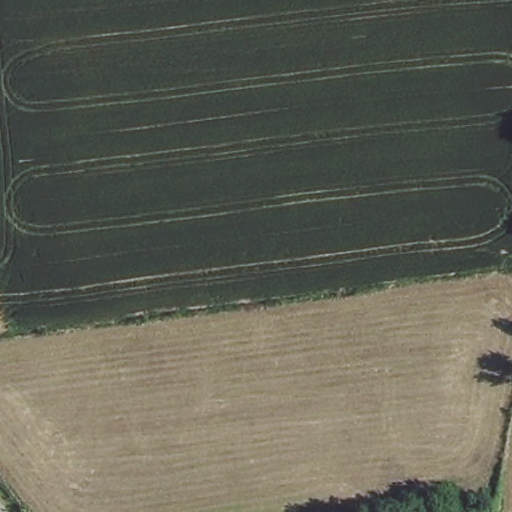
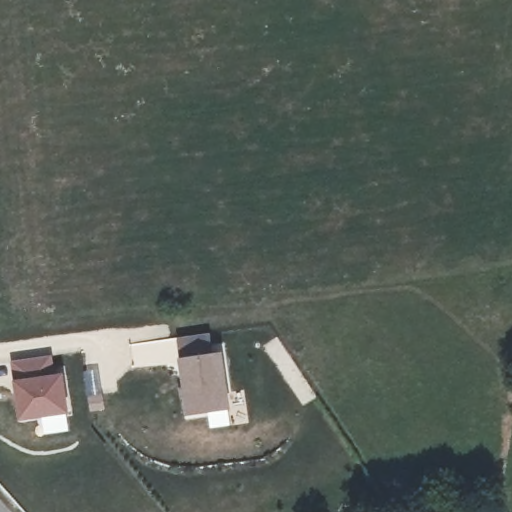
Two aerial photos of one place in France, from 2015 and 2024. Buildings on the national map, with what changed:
new [(231,409),(187,415),(179,359),(176,338),(209,333),(213,353),(222,352),(231,409)]
new [(69,413),(20,420),(14,381),(11,361),(51,357),(55,376),(63,374),(69,413)]

